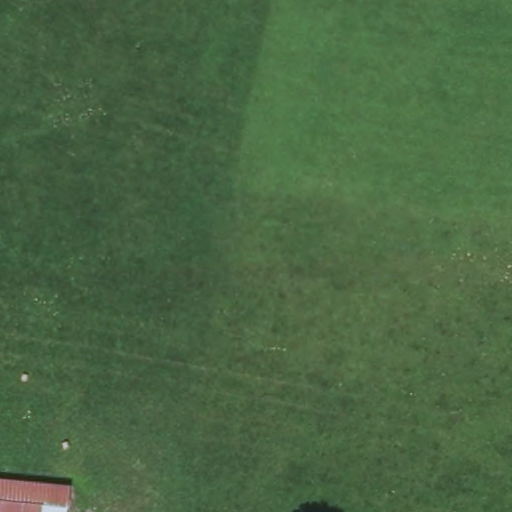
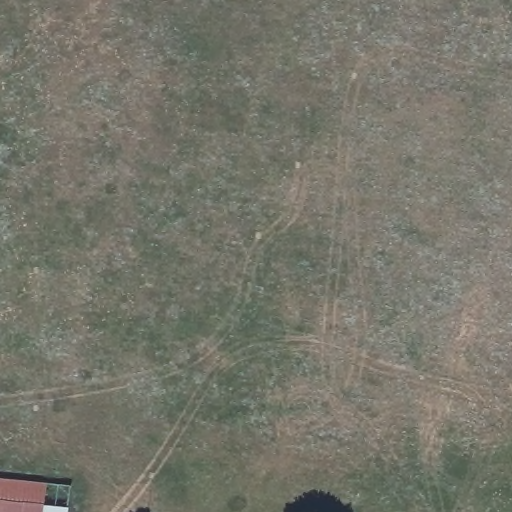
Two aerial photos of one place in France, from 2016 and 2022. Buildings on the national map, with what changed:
unchanged [(72,488),(69,512),(0,512),(0,481),(72,488)]

